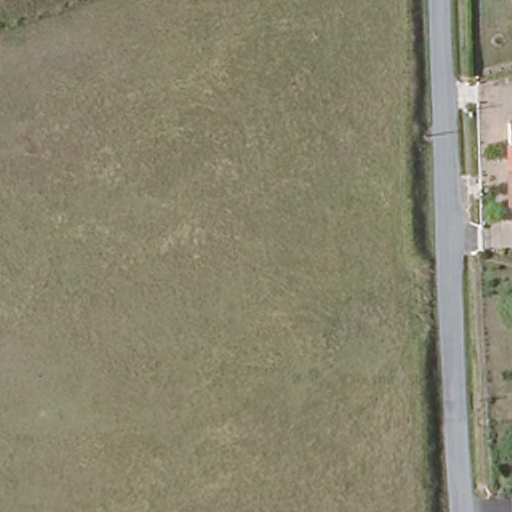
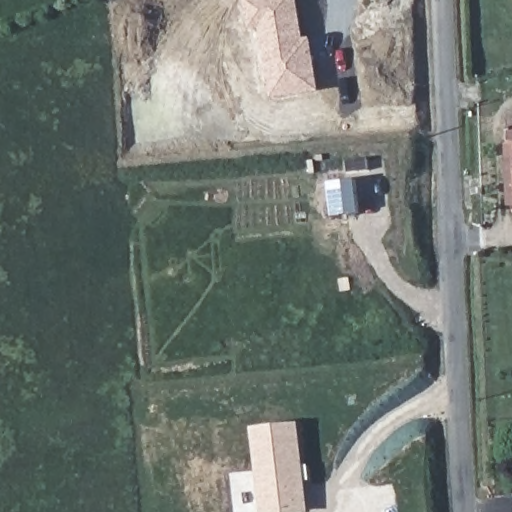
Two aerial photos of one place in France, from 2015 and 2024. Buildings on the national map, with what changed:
new [(312,39),(319,92),(270,97),(262,29),(251,30),(245,0),(300,0),(305,39),(312,39)]
unchanged [(510,124),(512,123),(512,162),(511,144),(510,124)]
new [(301,424),(309,512),(262,512),(253,429),(301,424)]

